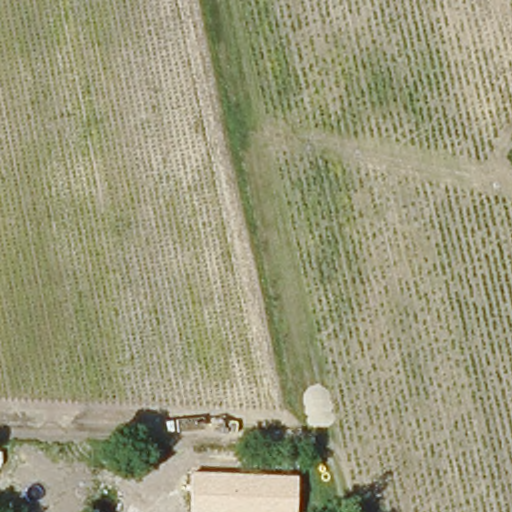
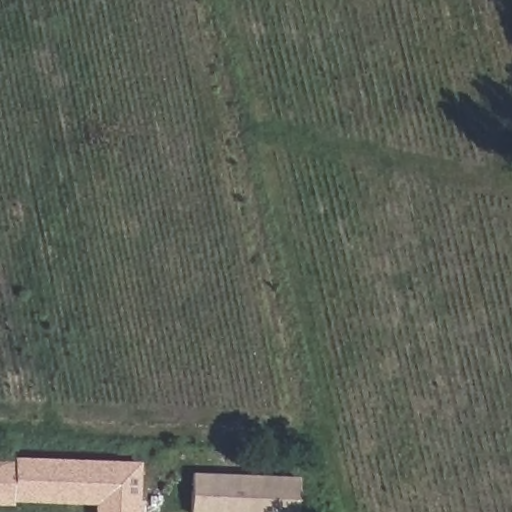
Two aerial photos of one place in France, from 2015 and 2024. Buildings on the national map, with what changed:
new [(90,512),(90,502),(6,500),(7,504),(0,504),(0,464),(8,464),(8,460),(132,463),(130,512),(90,512)]
unchanged [(189,512),(190,472),(298,476),(296,512),(189,512)]

